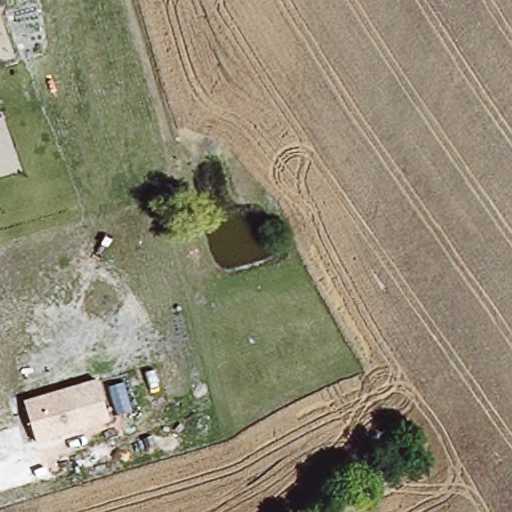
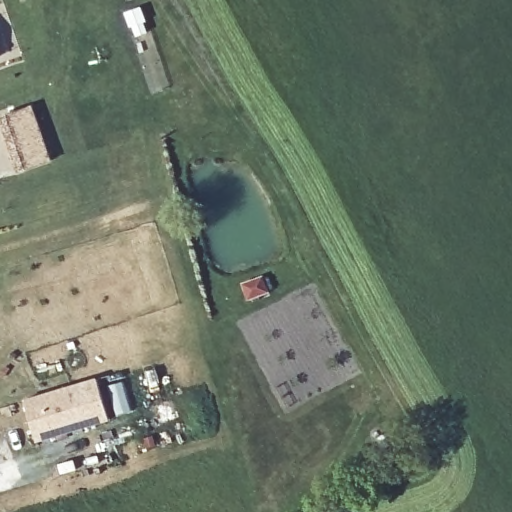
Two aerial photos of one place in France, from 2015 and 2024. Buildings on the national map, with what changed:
new [(0,117),(31,105),(51,161),(16,172),(0,125),(0,117)]
unchanged [(96,378),(108,420),(35,441),(24,399),(96,378)]

